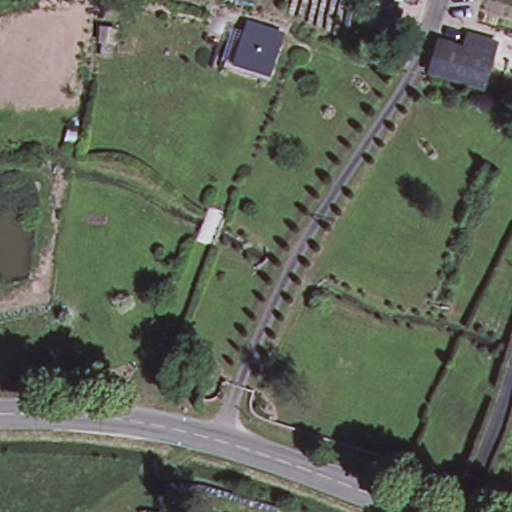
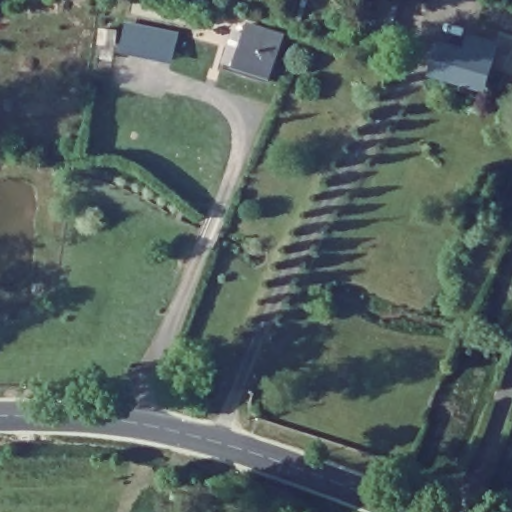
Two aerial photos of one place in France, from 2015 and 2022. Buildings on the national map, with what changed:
unchanged [(398,3),(390,32),(360,25),(367,0),(387,0),(398,3)]
new [(124,25),(172,34),(167,60),(119,52),(124,25)]
unchanged [(277,39),(273,51),(275,51),(265,83),(228,71),(242,27),(277,39)]
unchanged [(467,53),(472,40),(493,46),(481,84),(434,69),(440,47),(467,53)]

